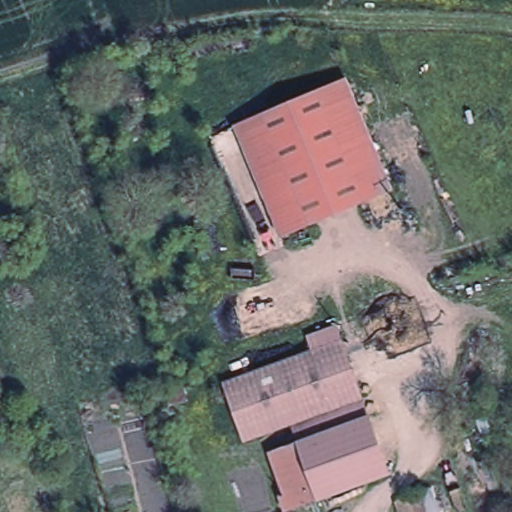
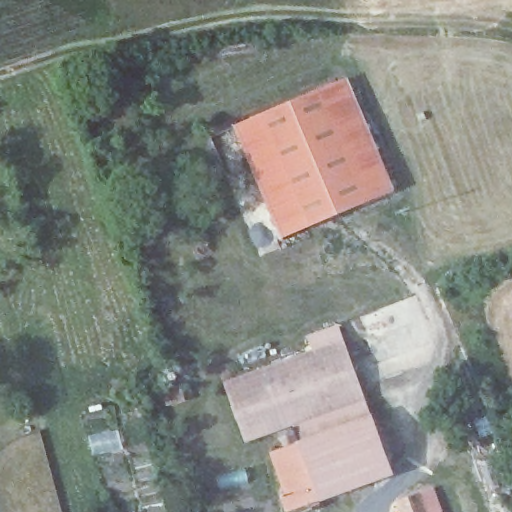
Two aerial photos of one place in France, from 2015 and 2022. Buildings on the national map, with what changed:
unchanged [(285,225),(251,111),(320,92),(357,81),(367,79),(382,129),(390,157),(400,192),(285,225)]
unchanged [(259,233),(226,119),(251,111),(285,225),(259,233)]
unchanged [(221,383),(311,351),(306,337),(338,325),(343,339),(364,399),(285,426),(241,441),(221,383)]
unchanged [(364,399),(370,414),(297,441),(291,443),(285,426),(364,399)]
unchanged [(370,414),(390,473),(318,499),(297,441),(370,414)]
unchanged [(285,510),(278,493),(285,491),(270,450),(291,443),(297,441),(318,499),(285,510)]
unchanged [(426,498),(431,512),(408,512),(405,504),(426,498)]

